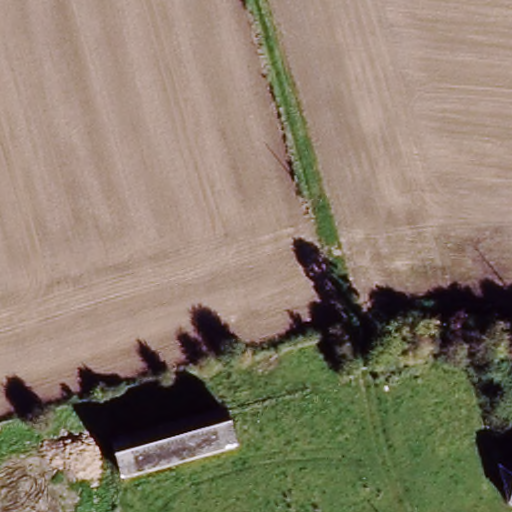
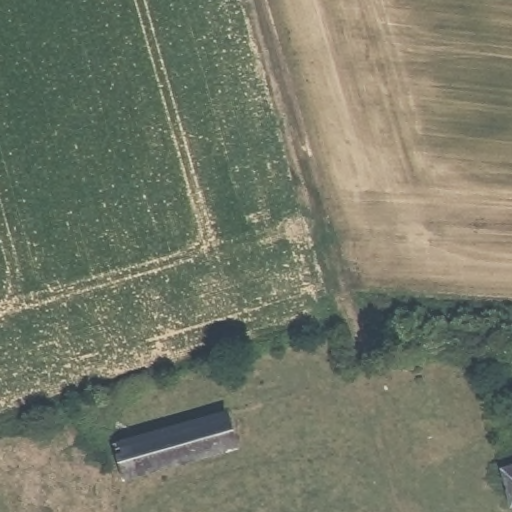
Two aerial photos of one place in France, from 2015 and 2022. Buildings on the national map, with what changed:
unchanged [(227,417),(248,409),(258,439),(118,479),(108,443),(225,410),(227,417)]
unchanged [(512,503),(502,470),(512,467),(512,503)]

